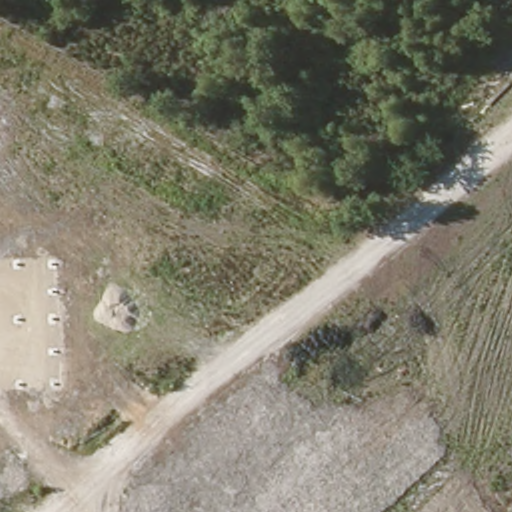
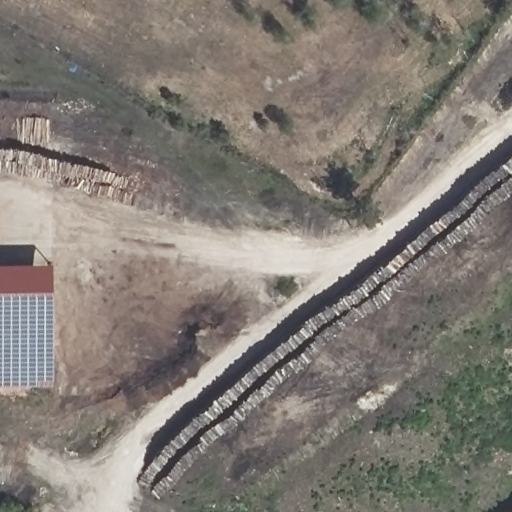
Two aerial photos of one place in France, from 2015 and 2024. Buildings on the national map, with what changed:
new [(52,263),(54,385),(0,386),(0,264),(52,263)]

